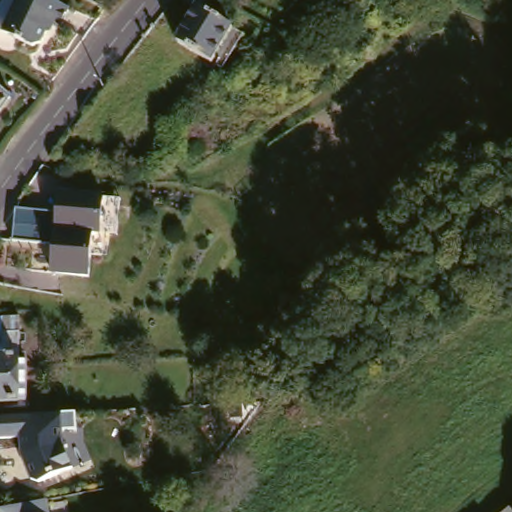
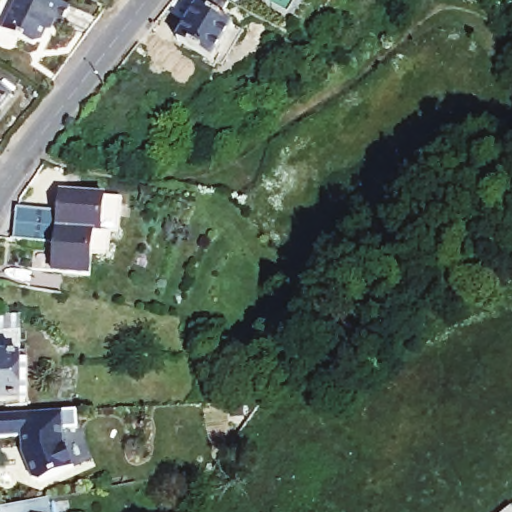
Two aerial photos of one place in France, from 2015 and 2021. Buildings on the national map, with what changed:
unchanged [(60,24),(51,43),(41,49),(10,34),(26,0),(61,0),(79,9),(70,29),(60,24)]
unchanged [(221,32),(217,38),(222,41),(201,76),(168,57),(188,22),(165,10),(172,0),(184,0),(217,17),(212,27),(221,32)]
unchanged [(0,94),(8,100),(0,110),(0,94)]
unchanged [(106,197),(101,234),(93,232),(86,276),(50,271),(54,244),(11,237),(16,205),(59,211),(61,191),(106,197)]
unchanged [(24,361),(23,411),(16,411),(16,405),(0,405),(0,336),(16,336),(16,361),(24,361)]
unchanged [(77,413),(78,430),(63,431),(66,451),(72,471),(38,482),(30,480),(21,439),(0,439),(0,419),(61,413),(77,413)]
unchanged [(45,502),(47,512),(0,512),(0,511),(45,502)]
unchanged [(506,510),(512,505),(512,512),(507,512),(506,510)]

